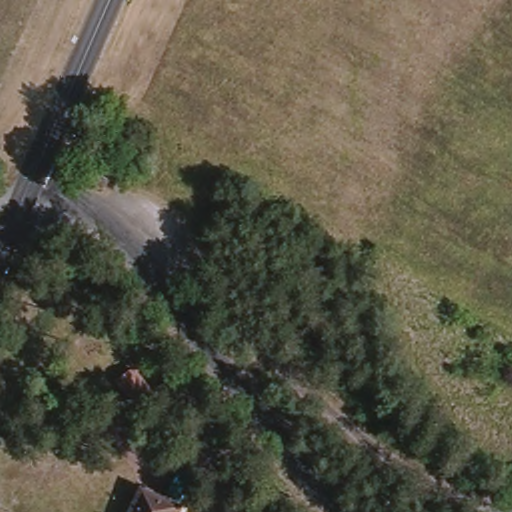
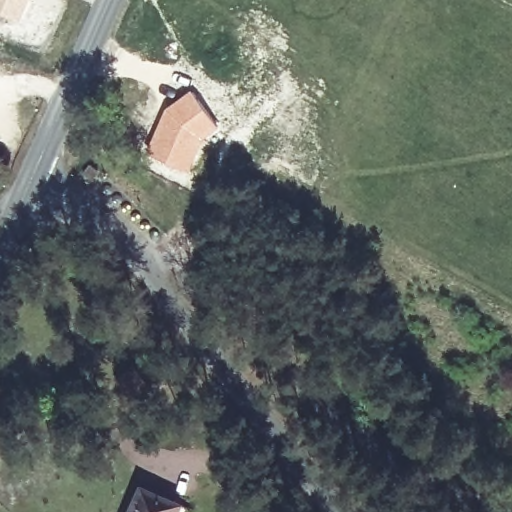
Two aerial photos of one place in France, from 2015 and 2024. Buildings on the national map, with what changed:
new [(0,0),(31,0),(22,21),(0,11),(0,0)]
new [(166,109),(192,90),(219,130),(204,141),(187,175),(146,151),(166,109)]
unchanged [(141,489),(181,507),(179,512),(131,512),(141,489)]

